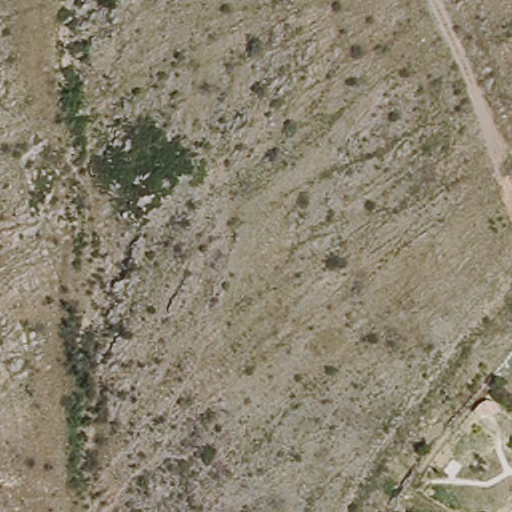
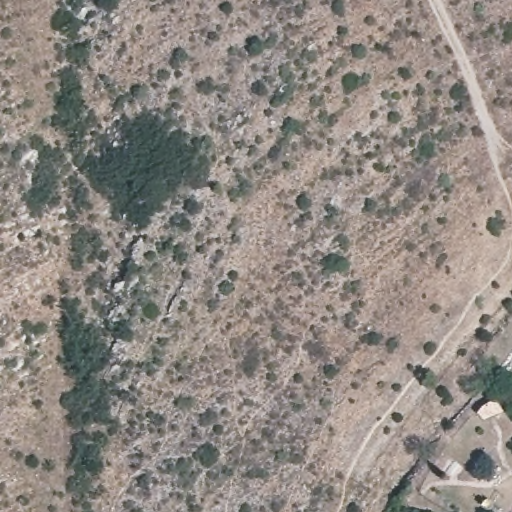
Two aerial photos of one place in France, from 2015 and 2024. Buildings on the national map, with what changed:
[]

